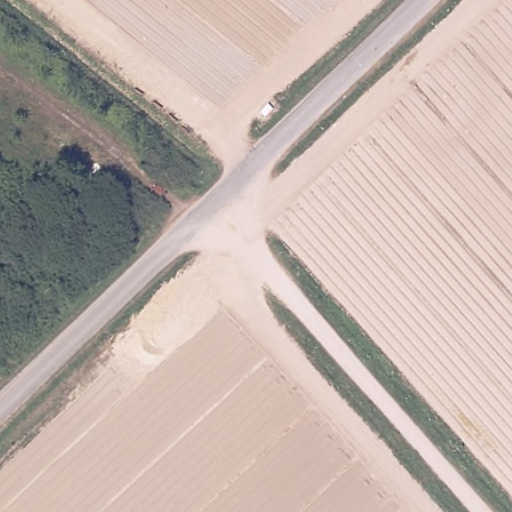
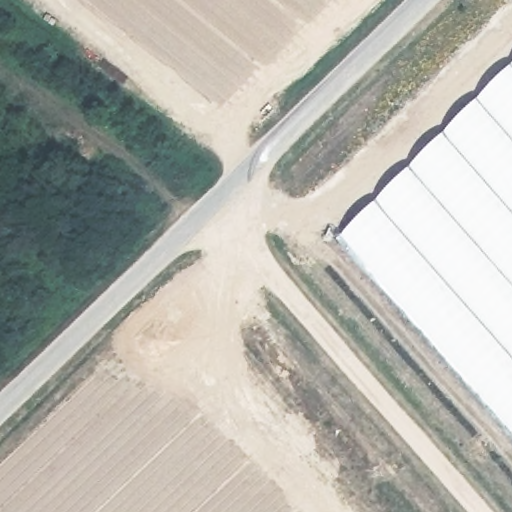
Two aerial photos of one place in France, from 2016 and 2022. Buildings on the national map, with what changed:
new [(512,66),(512,430),(342,237),(512,66)]

